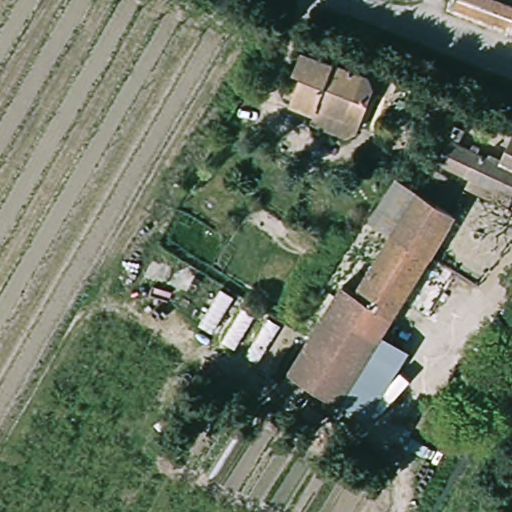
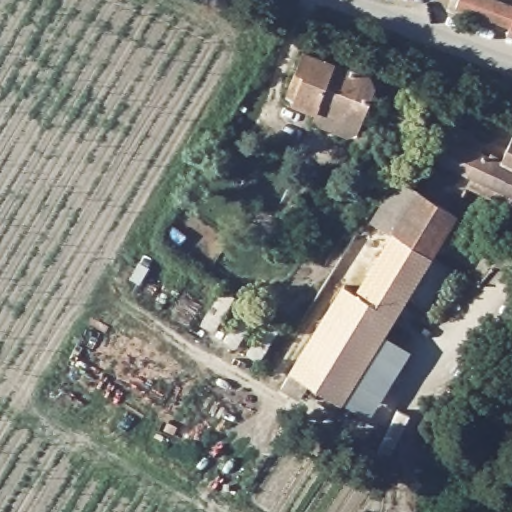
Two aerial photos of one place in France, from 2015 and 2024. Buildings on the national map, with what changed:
unchanged [(511,25),(459,7),(461,0),(497,0),(512,6),(512,33),(509,32),(511,25)]
unchanged [(366,78),(369,93),(355,130),(339,139),(307,126),(310,116),(289,106),(288,105),(290,100),(280,98),(298,54),(366,78)]
unchanged [(509,136),(512,138),(512,159),(500,153),(509,136)]
unchanged [(437,172),(448,146),(503,172),(505,165),(512,168),(512,204),(510,209),(437,172)]
unchanged [(365,226),(391,184),(412,197),(451,220),(426,264),(385,239),(365,226)]
unchanged [(385,239),(426,264),(378,345),(339,412),(303,390),(295,404),(277,394),(337,289),(352,298),(381,245),(385,239)]
unchanged [(401,359),(363,426),(339,412),(378,345),(401,359)]
unchanged [(463,446),(425,424),(441,395),(479,417),(463,446)]

